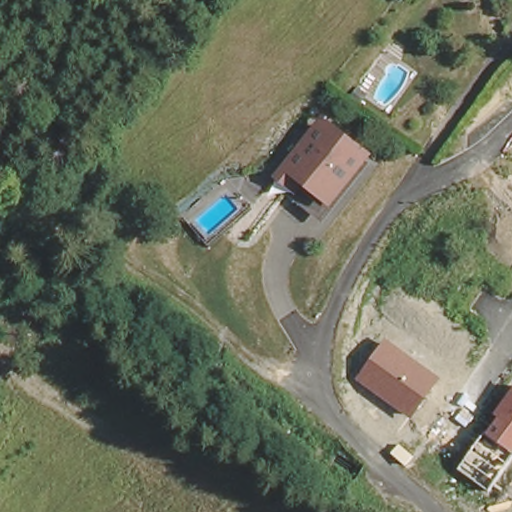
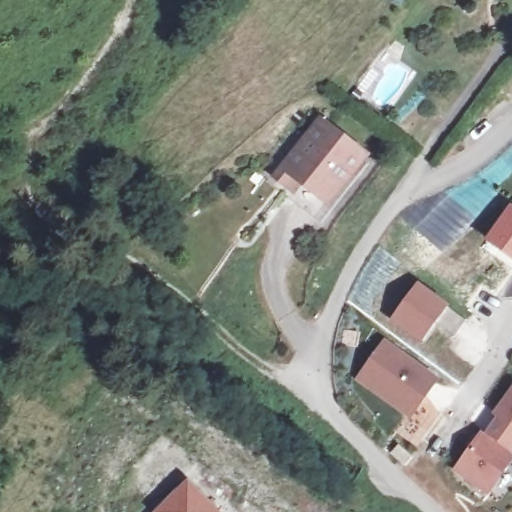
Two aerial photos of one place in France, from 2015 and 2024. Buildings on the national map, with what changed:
unchanged [(296,172),(286,165),(316,123),(357,153),(327,195),(319,207),(287,184),(296,172)]
new [(510,202),(512,203),(512,261),(483,238),(510,202)]
new [(451,305),(423,343),(390,320),(418,282),(451,305)]
unchanged [(441,379),(412,419),(357,380),(386,338),(441,379)]
unchanged [(491,491),(460,469),(498,416),(494,414),(512,391),(512,461),(491,491)]
new [(188,478),(221,512),(152,512),(188,478)]

